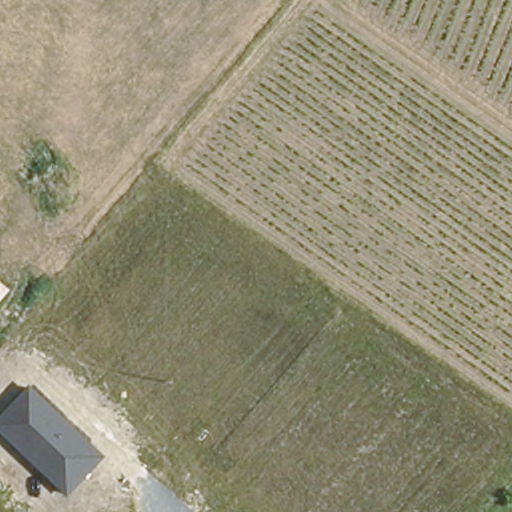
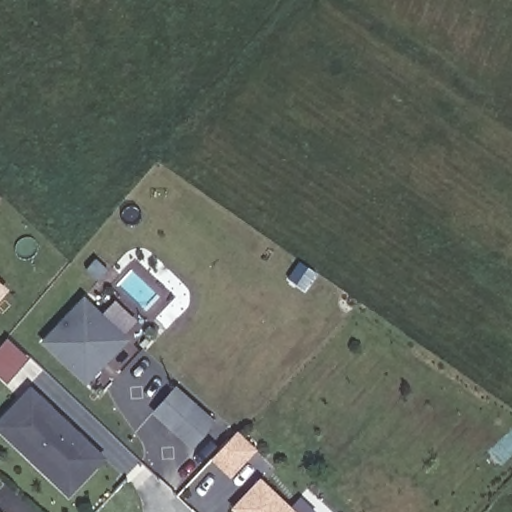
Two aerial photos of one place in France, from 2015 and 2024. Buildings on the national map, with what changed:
unchanged [(0,299),(0,282),(8,289),(0,299)]
new [(85,295),(129,339),(86,384),(40,340),(85,295)]
unchanged [(69,496),(0,431),(0,418),(31,385),(107,456),(69,496)]
new [(195,402),(217,422),(196,446),(174,426),(195,402)]
new [(237,435),(256,451),(232,477),(214,460),(237,435)]
new [(261,478),(297,512),(234,512),(230,508),(261,478)]

